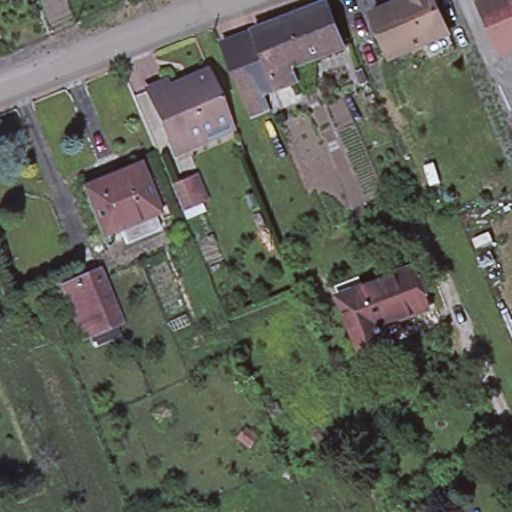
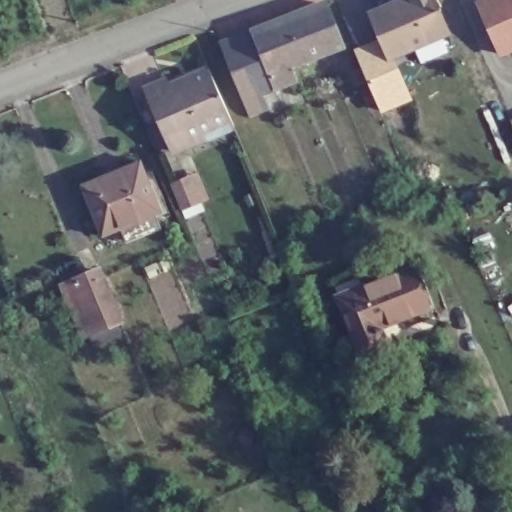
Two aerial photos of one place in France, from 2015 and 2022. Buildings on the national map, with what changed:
unchanged [(450,33),(391,58),(373,14),(394,5),(391,0),(436,0),(450,33)]
unchanged [(488,0),(512,0),(512,49),(500,54),(478,4),(488,0)]
unchanged [(342,47),(292,67),(275,23),(325,4),(342,47)]
unchanged [(269,109),(251,116),(247,105),(245,99),(223,42),(275,23),(292,67),(296,79),(261,92),(264,98),(265,98),(269,109)]
new [(391,58),(411,101),(379,116),(353,48),(381,36),(391,58)]
unchanged [(190,144),(173,152),(146,89),(163,82),(166,88),(208,70),(230,121),(233,126),(190,144)]
unchanged [(512,124),(510,119),(512,118),(512,124)]
unchanged [(119,244),(113,228),(95,235),(75,184),(133,162),(141,179),(148,177),(164,216),(151,222),(154,229),(119,244)]
unchanged [(171,180),(190,172),(196,170),(205,193),(199,195),(180,203),(171,180)]
unchanged [(431,303),(383,322),(386,330),(387,338),(386,345),(383,350),(378,354),(371,356),(366,356),(360,355),(355,352),(351,345),(331,296),(326,284),(362,270),(366,283),(416,263),(431,303)]
unchanged [(86,340),(82,328),(77,330),(56,280),(93,265),(114,314),(109,317),(114,328),(86,340)]
unchanged [(349,450),(324,461),(319,448),(344,438),(349,450)]

